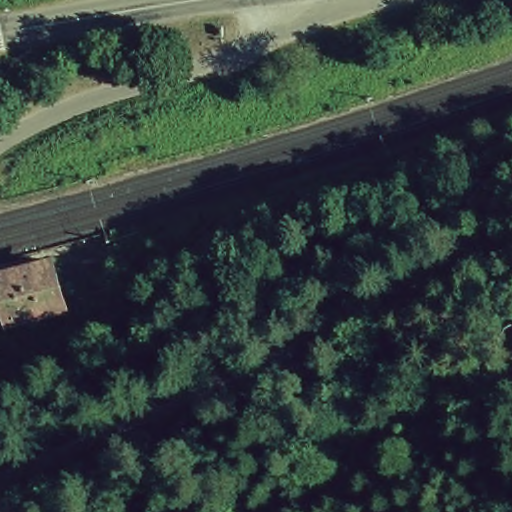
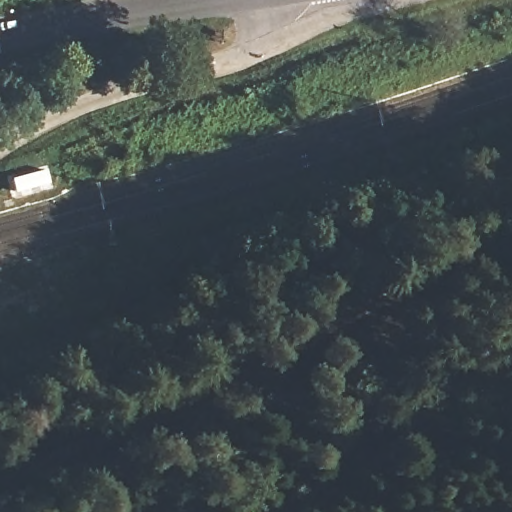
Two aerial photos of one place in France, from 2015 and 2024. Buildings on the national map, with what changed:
demolished [(73,318),(0,337),(0,274),(58,255),(73,318)]
new [(63,311),(0,327),(0,278),(50,265),(63,311)]

